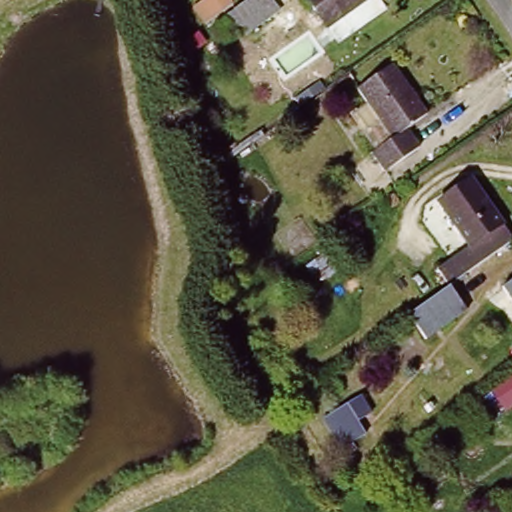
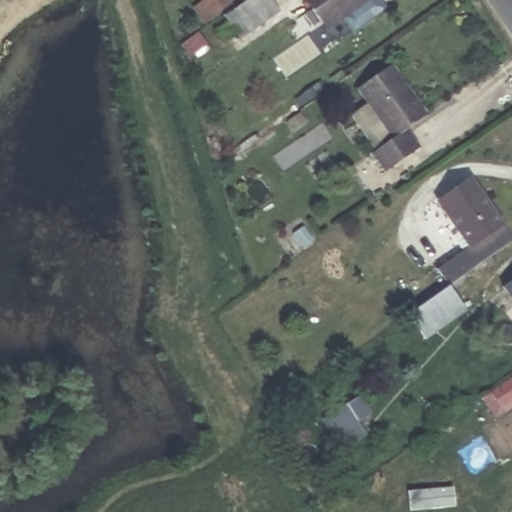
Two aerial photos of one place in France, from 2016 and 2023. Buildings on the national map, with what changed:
unchanged [(244,0),(274,0),(280,7),(248,27),(234,7),(244,0)]
unchanged [(329,27),(310,0),(366,0),(329,27)]
unchanged [(227,23),(235,33),(223,41),(216,31),(227,23)]
unchanged [(395,70),(425,112),(407,127),(420,146),(386,171),(373,153),(390,139),(362,96),(395,70)]
unchanged [(512,234),(512,241),(452,285),(438,266),(469,243),(440,203),(470,180),(512,234)]
unchanged [(339,266),(315,281),(304,265),(328,249),(339,266)]
unchanged [(504,285),(512,280),(512,296),(504,285)]
unchanged [(452,285),(469,308),(429,337),(412,314),(452,285)]
unchanged [(370,401),(353,416),(364,429),(342,445),(322,415),(363,390),(370,401)]

